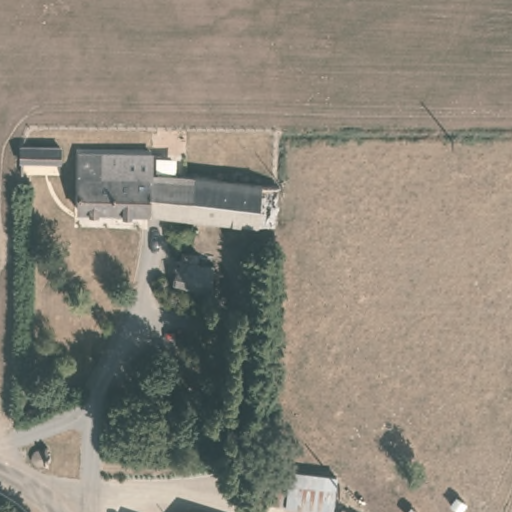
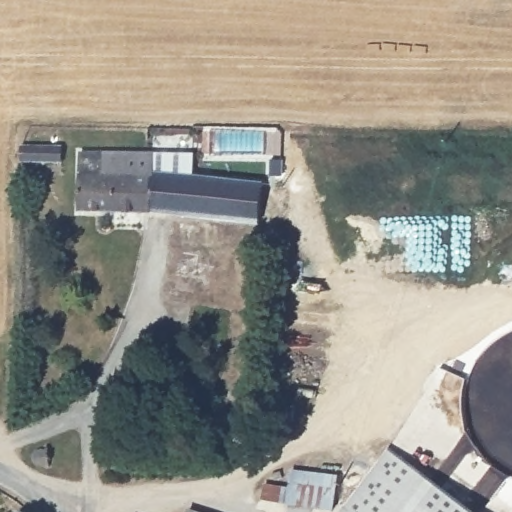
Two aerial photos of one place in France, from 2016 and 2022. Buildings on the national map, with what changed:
unchanged [(19,144),(55,145),(56,148),(62,149),(62,163),(19,162),(19,144)]
unchanged [(154,174),(186,178),(187,174),(267,186),(266,222),(156,209),(70,206),(72,184),(81,184),(82,153),(154,155),(154,174)]
unchanged [(205,295),(169,287),(175,259),(211,267),(205,295)]
unchanged [(47,466),(46,462),(39,466),(27,464),(27,454),(35,447),(47,447),(47,466)]
new [(472,512),(336,512),(387,448),(472,512)]
unchanged [(282,489),(285,471),(334,478),(329,512),(322,512),(280,506),(258,502),(261,486),(282,489)]
unchanged [(194,512),(186,512),(187,510),(194,512)]

